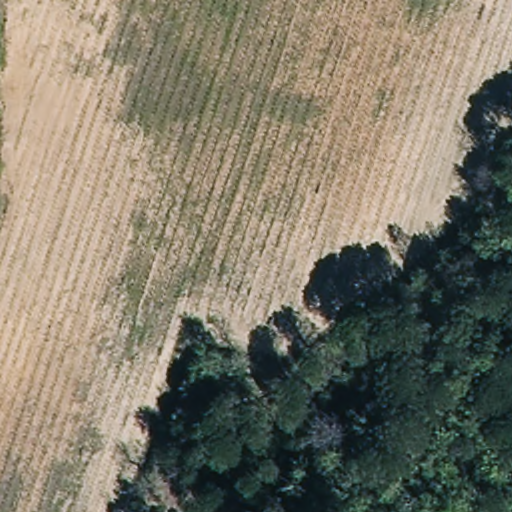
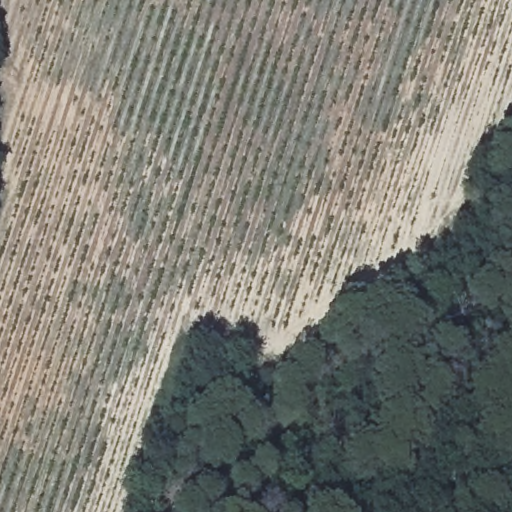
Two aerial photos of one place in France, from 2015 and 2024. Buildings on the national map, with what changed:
[]

